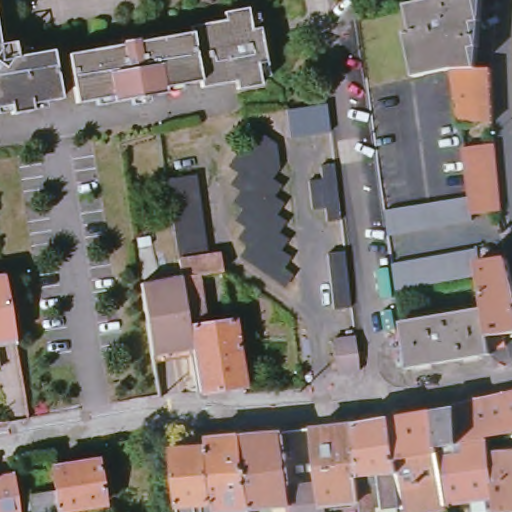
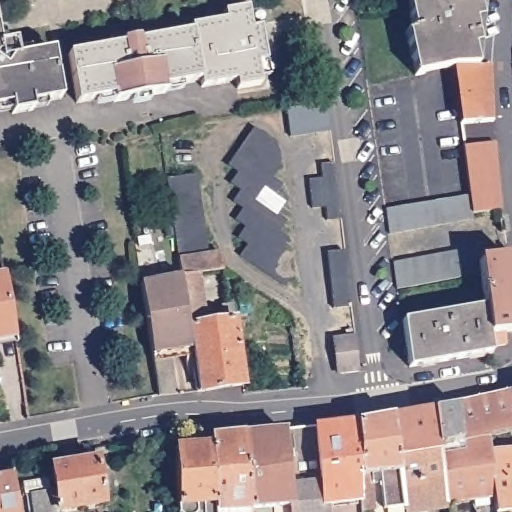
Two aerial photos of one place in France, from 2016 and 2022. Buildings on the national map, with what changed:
unchanged [(485,19),(476,22),(481,44),(424,56),(428,73),(418,75),(410,30),(418,28),(413,2),(425,0),(481,0),(485,19)]
unchanged [(111,96),(79,102),(70,52),(124,43),(124,40),(140,37),(141,40),(195,31),(193,24),(228,18),(226,10),(249,7),(254,28),(259,28),(267,60),(259,62),(264,86),(240,89),(239,83),(203,88),(201,82),(164,88),(166,95),(113,103),(111,96)]
unchanged [(12,105),(0,106),(0,27),(4,48),(19,47),(21,60),(56,56),(63,100),(34,105),(35,111),(14,114),(12,105)]
unchanged [(456,66),(494,66),(497,120),(464,124),(456,66)]
unchanged [(286,106),(326,102),(330,128),(290,132),(286,106)]
unchanged [(246,263),(251,251),(243,246),(246,234),(240,230),(244,219),(238,217),(243,206),(237,201),(241,190),(236,187),(241,175),(232,170),(255,124),(279,136),(272,149),(276,192),(282,195),(279,206),(285,210),(281,221),(288,226),(284,237),(290,241),(286,253),(292,256),(288,267),(295,271),(290,282),(246,263)]
unchanged [(506,208),(478,212),(475,192),(468,146),(498,143),(506,208)]
unchanged [(341,216),(326,217),(324,205),(313,205),(308,177),(321,176),(319,163),(333,160),(341,216)]
unchanged [(185,273),(171,186),(200,182),(215,271),(185,273)]
unchanged [(391,205),(475,192),(478,212),(478,218),(395,232),(391,205)]
unchanged [(351,304),(334,306),(327,251),(345,249),(351,304)]
unchanged [(476,254),(478,265),(480,278),(398,292),(394,268),(476,254)]
unchanged [(512,287),(512,335),(490,339),(485,308),(480,278),(478,265),(506,260),(512,287)]
unchanged [(203,391),(196,345),(185,273),(215,271),(227,270),(229,286),(208,291),(213,324),(239,320),(249,384),(203,391)]
unchanged [(145,278),(185,273),(196,345),(157,352),(145,278)]
unchanged [(4,276),(14,325),(0,328),(0,277),(4,276)]
unchanged [(490,339),(494,354),(411,370),(403,322),(485,308),(490,339)]
unchanged [(359,370),(337,373),(333,339),(355,336),(359,370)]
unchanged [(459,439),(459,434),(437,437),(431,408),(454,403),(454,401),(505,390),(512,389),(512,432),(488,435),(490,453),(494,495),(451,500),(449,500),(438,442),(459,439)]
unchanged [(400,471),(400,456),(391,415),(431,408),(437,437),(438,442),(449,500),(402,497),(400,471)]
unchanged [(355,422),(391,415),(400,456),(400,471),(360,474),(355,422)]
unchanged [(324,502),(318,425),(355,422),(360,474),(362,512),(330,512),(329,503),(324,502)]
unchanged [(284,430),(318,425),(324,502),(329,503),(330,512),(295,512),(295,504),(254,509),(251,434),(284,430)]
unchanged [(211,446),(210,437),(251,434),(254,509),(216,506),(211,446)]
unchanged [(175,450),(211,446),(216,506),(180,510),(175,450)]
unchanged [(512,450),(512,512),(495,512),(494,495),(490,453),(512,450)]
unchanged [(61,486),(57,461),(101,454),(108,497),(65,506),(66,512),(39,512),(35,490),(61,486)]
unchanged [(13,468),(19,512),(0,512),(0,471),(13,468)]

